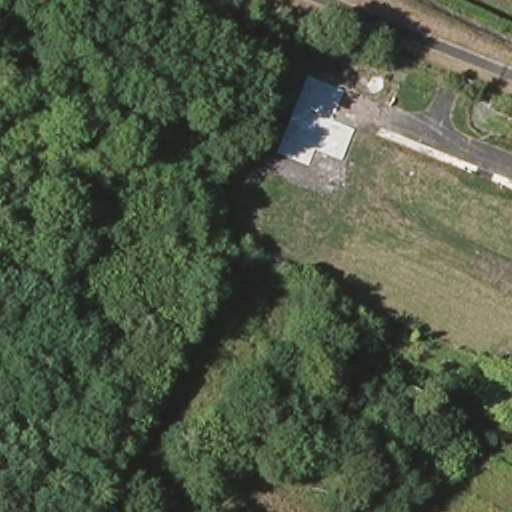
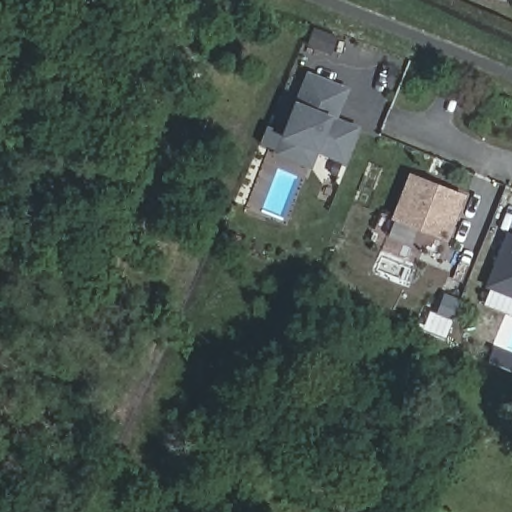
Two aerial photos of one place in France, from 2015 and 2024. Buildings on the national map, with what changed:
unchanged [(333,119),(355,128),(343,160),(315,149),(309,164),(276,151),(308,74),(346,89),(333,119)]
new [(448,239),(391,218),(409,172),(467,194),(448,239)]
demolished [(241,189),(261,198),(240,250),(220,243),(241,189)]
new [(506,232),(512,234),(512,297),(486,287),(506,232)]

